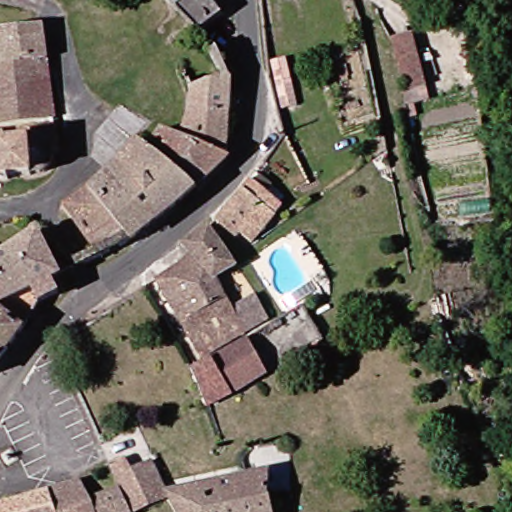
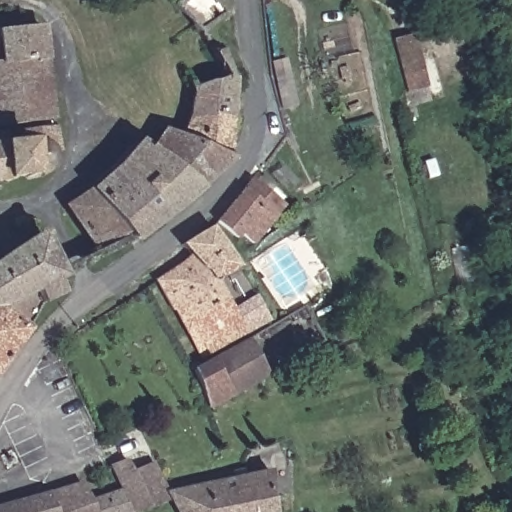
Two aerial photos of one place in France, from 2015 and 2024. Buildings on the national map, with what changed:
unchanged [(182,5),(188,0),(213,0),(221,14),(202,23),(182,5)]
unchanged [(14,33),(46,30),(50,64),(18,67),(0,70),(0,48),(15,46),(15,35),(14,33)]
unchanged [(413,36),(425,91),(405,95),(393,40),(413,36)]
unchanged [(50,64),(55,63),(63,126),(0,131),(0,70),(18,67),(50,64)]
unchanged [(210,110),(210,78),(248,82),(245,116),(210,110)]
unchanged [(195,138),(210,110),(245,116),(241,161),(195,138)]
unchanged [(12,136),(13,149),(29,148),(27,137),(65,132),(67,156),(60,156),(53,175),(38,181),(38,184),(32,184),(32,181),(17,182),(17,186),(14,186),(14,185),(0,186),(0,137),(12,136)]
unchanged [(145,239),(110,256),(78,204),(110,188),(120,180),(137,163),(154,145),(165,154),(179,132),(195,138),(241,161),(145,239)]
unchanged [(290,215),(267,244),(255,235),(252,240),(232,222),(259,190),(290,215)]
unchanged [(278,321),(256,333),(215,356),(172,278),(203,256),(197,245),(225,227),(250,266),(228,281),(245,312),(267,300),(278,321)]
unchanged [(48,231),(60,252),(68,274),(63,277),(68,288),(50,297),(30,326),(3,297),(0,300),(0,262),(20,249),(48,231)]
unchanged [(3,297),(30,326),(0,368),(0,300),(3,297)]
unchanged [(230,357),(254,343),(262,338),(280,370),(260,384),(240,395),(220,404),(207,369),(230,357)]
unchanged [(102,499),(134,489),(123,464),(142,456),(148,470),(167,462),(180,494),(182,498),(153,512),(0,512),(0,508),(95,481),(102,499)]
unchanged [(291,503),(285,505),(286,512),(189,512),(182,498),(180,494),(280,475),(283,491),(290,490),(291,503)]

